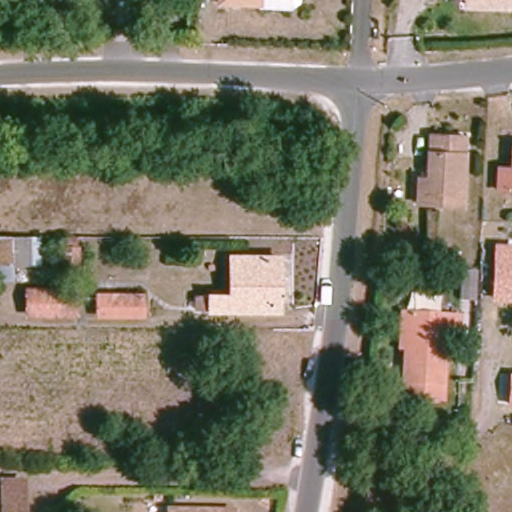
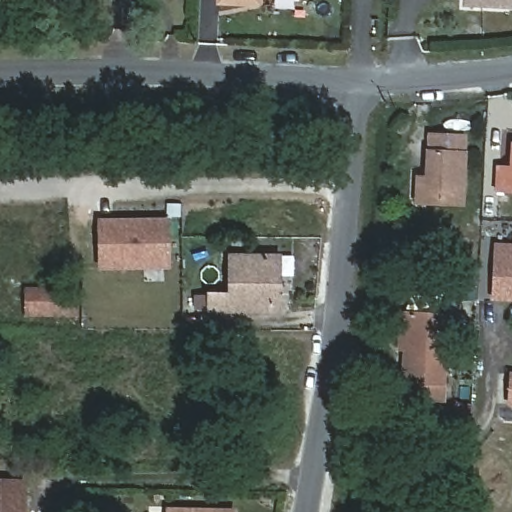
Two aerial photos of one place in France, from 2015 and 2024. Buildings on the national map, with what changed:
unchanged [(258,7),(218,4),(219,0),(259,0),(258,7)]
unchanged [(463,0),(512,0),(512,4),(480,3),(463,2),(463,0)]
unchanged [(415,200),(417,177),(424,179),(429,133),(467,137),(460,204),(415,200)]
unchanged [(496,189),(497,167),(511,168),(512,151),(512,190),(496,189)]
new [(97,269),(96,218),(168,217),(170,268),(97,269)]
demolished [(29,262),(11,261),(0,262),(0,235),(29,235),(29,262)]
unchanged [(512,248),(512,275),(500,274),(501,247),(512,248)]
demolished [(65,248),(78,248),(77,266),(65,266),(65,248)]
unchanged [(196,310),(196,295),(230,295),(231,255),(278,256),(277,311),(196,310)]
unchanged [(75,313),(28,313),(29,289),(76,289),(75,313)]
demolished [(143,295),(142,314),(98,313),(98,294),(143,295)]
unchanged [(441,400),(400,396),(401,380),(404,380),(406,349),(399,349),(402,314),(409,315),(447,317),(441,400)]
unchanged [(506,406),(510,371),(512,372),(512,407),(506,406)]
unchanged [(24,512),(0,512),(0,480),(24,480),(24,512)]
unchanged [(234,511),(234,512),(168,512),(168,510),(234,511)]

